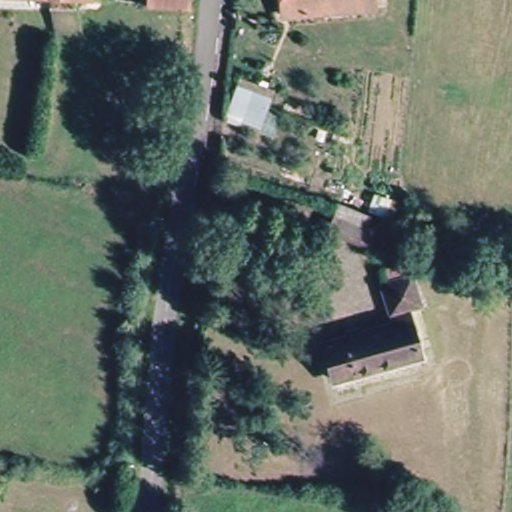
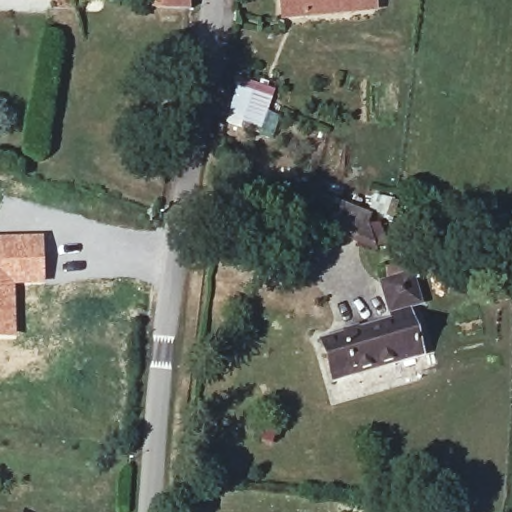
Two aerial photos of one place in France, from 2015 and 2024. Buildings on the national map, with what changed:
unchanged [(146,0),(191,0),(191,10),(146,0)]
unchanged [(275,0),(300,0),(300,14),(276,16),(275,0)]
unchanged [(370,0),(370,7),(300,14),(300,0),(370,0)]
unchanged [(237,120),(251,92),(266,100),(253,127),(237,120)]
unchanged [(360,251),(309,230),(319,201),(360,220),(360,251)]
new [(45,236),(46,283),(16,286),(17,337),(0,338),(0,238),(45,236)]
unchanged [(317,338),(385,320),(375,281),(404,272),(412,303),(401,306),(412,353),(327,378),(317,338)]

